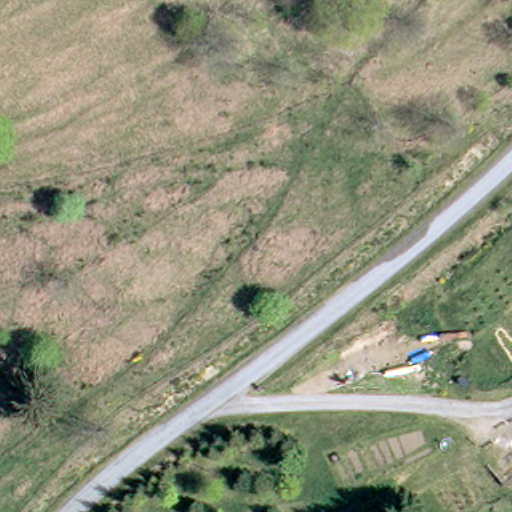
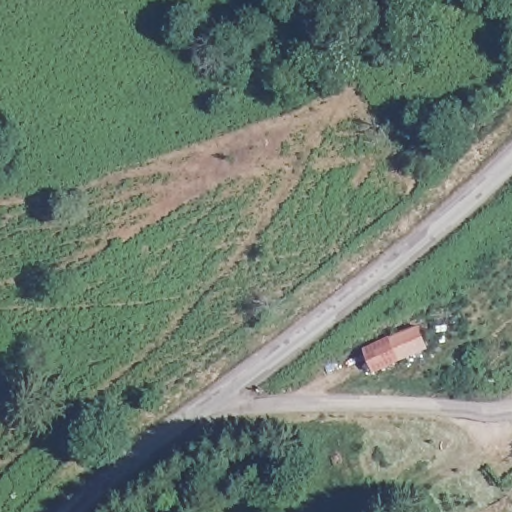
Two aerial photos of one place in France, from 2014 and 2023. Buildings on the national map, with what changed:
new [(419,325),(429,345),(401,360),(379,372),(369,354),(391,341),(419,325)]

